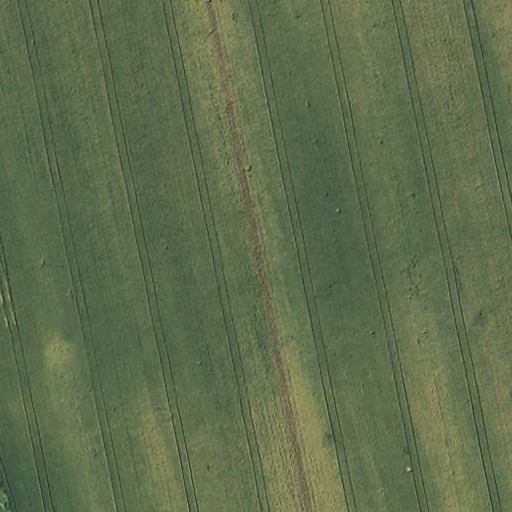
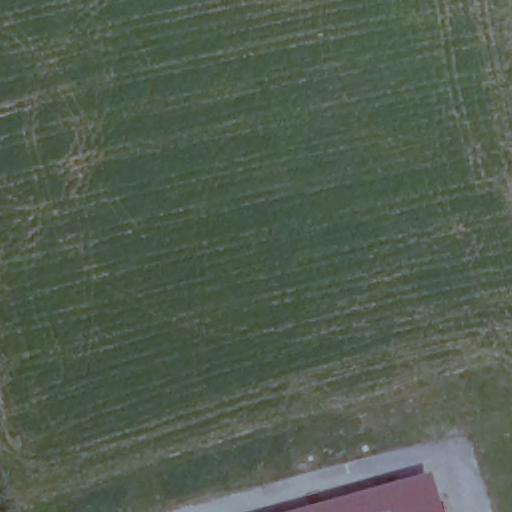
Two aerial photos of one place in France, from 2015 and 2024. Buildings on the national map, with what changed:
new [(442,512),(290,512),(430,473),(442,512)]

